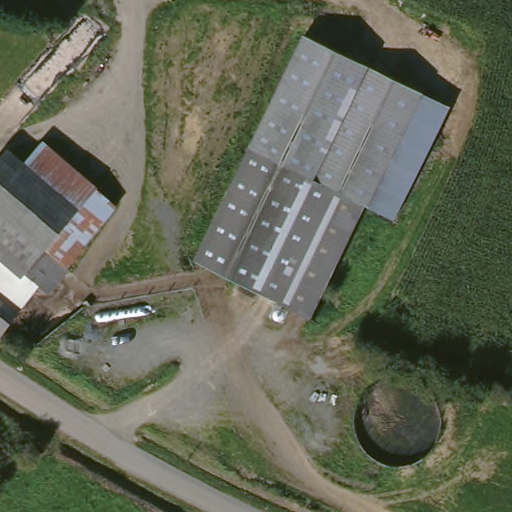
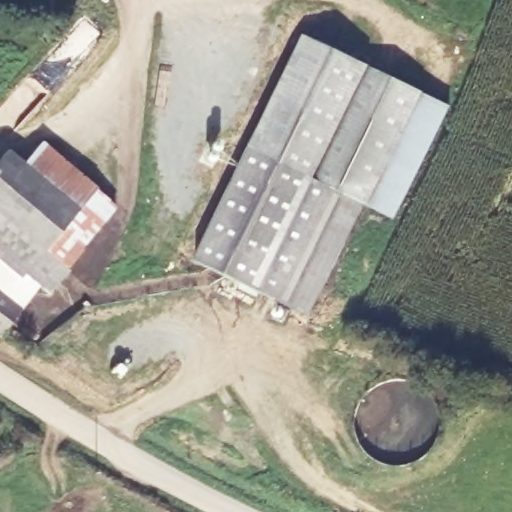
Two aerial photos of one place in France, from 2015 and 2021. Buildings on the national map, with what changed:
unchanged [(370,199),(307,322),(193,265),(300,39),(422,97),(370,199)]
unchanged [(453,110),(400,221),(370,199),(422,97),(453,110)]
unchanged [(0,302),(0,152),(52,181),(62,173),(94,190),(45,288),(38,284),(20,314),(0,302)]
unchanged [(2,344),(0,343),(0,302),(20,314),(2,344)]

